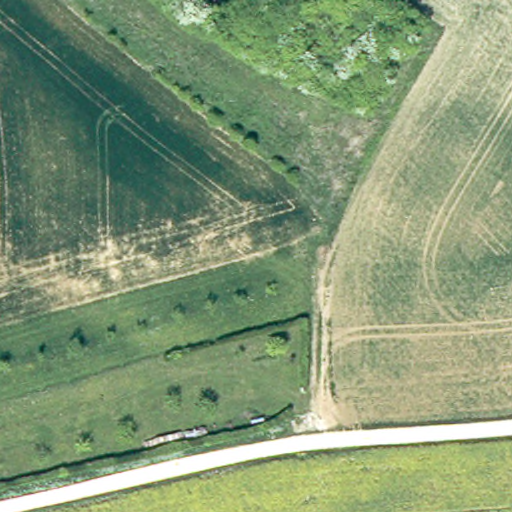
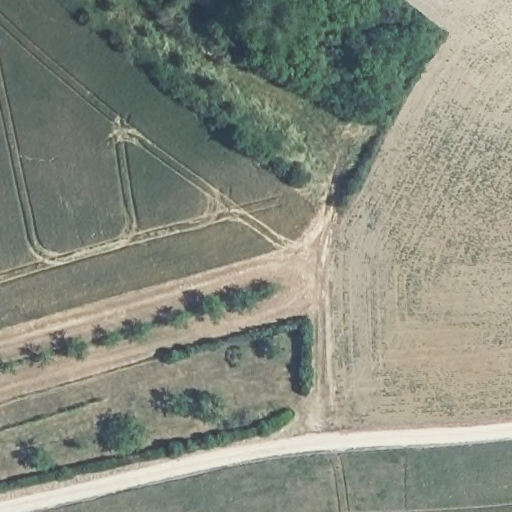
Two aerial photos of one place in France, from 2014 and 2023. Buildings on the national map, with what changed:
unchanged [(213,12),(200,0),(219,0),(222,2),(213,12)]

